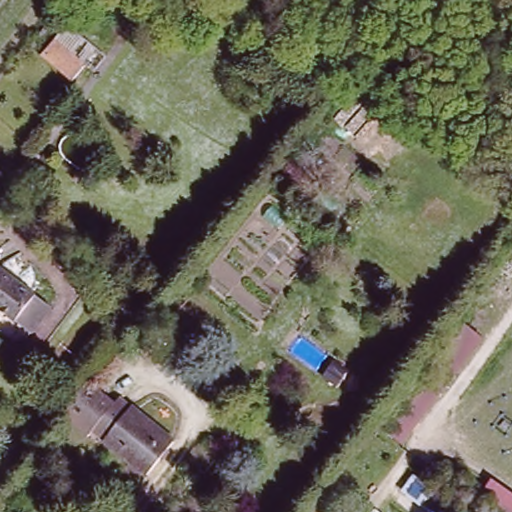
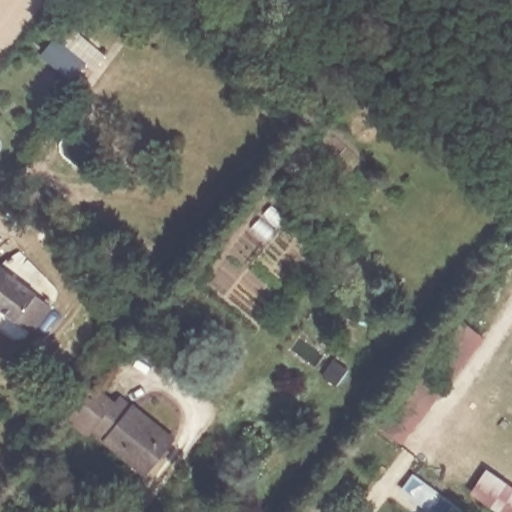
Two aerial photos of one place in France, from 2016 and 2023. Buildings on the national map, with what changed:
unchanged [(38,54),(50,40),(82,64),(70,80),(38,54)]
unchanged [(0,304),(0,266),(37,295),(50,308),(33,332),(18,319),(0,304)]
unchanged [(484,334),(400,438),(380,424),(462,314),(484,334)]
unchanged [(98,425),(94,432),(62,407),(87,375),(117,399),(123,392),(178,434),(154,469),(98,425)]
unchanged [(512,488),(512,512),(476,512),(465,504),(487,471),(512,488)]

